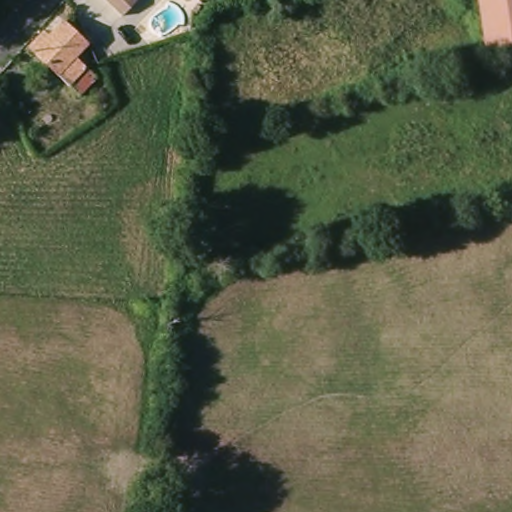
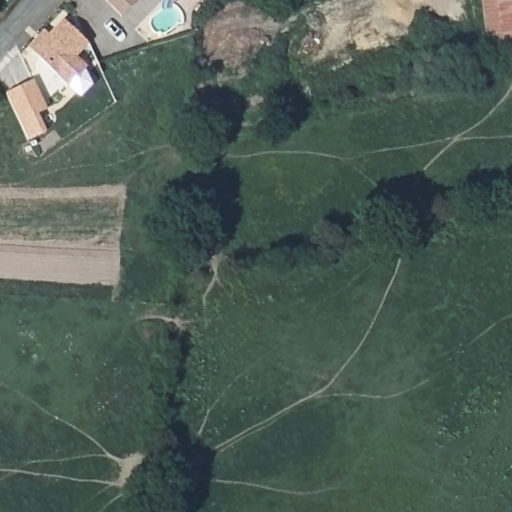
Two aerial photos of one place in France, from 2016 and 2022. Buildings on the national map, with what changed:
unchanged [(122,15),(107,0),(137,0),(122,15)]
unchanged [(481,0),(512,0),(512,44),(488,47),(481,0)]
unchanged [(87,43),(74,56),(86,67),(69,85),(57,74),(33,52),(34,51),(29,46),(42,31),(48,37),(63,21),(87,43)]
new [(33,81),(46,109),(37,114),(45,132),(27,140),(6,93),(33,81)]

